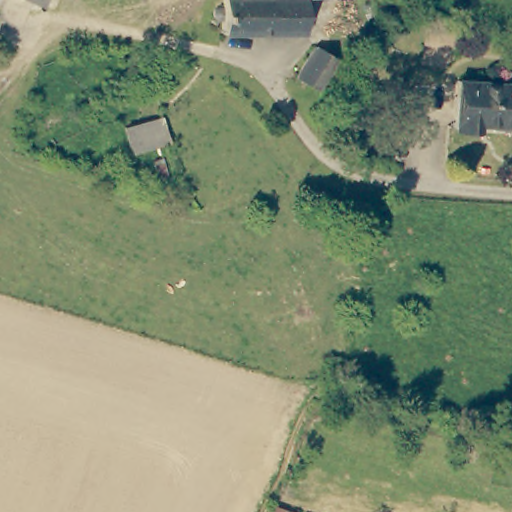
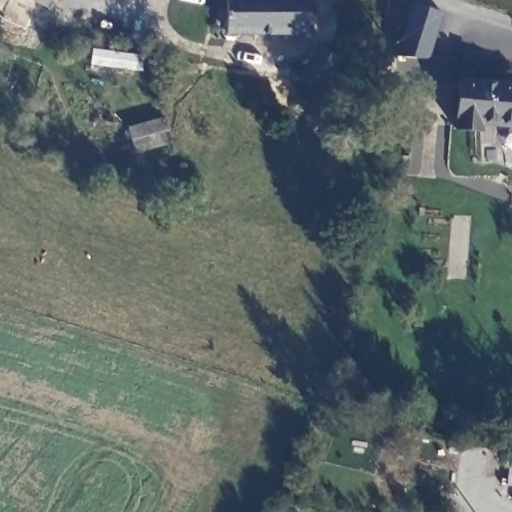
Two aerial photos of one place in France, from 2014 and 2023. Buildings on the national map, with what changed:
unchanged [(38,0),(37,2),(32,0),(38,0)]
unchanged [(37,2),(38,0),(52,0),(49,7),(37,2)]
unchanged [(226,34),(224,22),(217,21),(213,14),(214,4),(220,1),(223,0),(308,0),(308,31),(226,34)]
new [(428,59),(393,58),(407,3),(441,11),(428,59)]
unchanged [(337,60),(316,92),(295,79),(316,47),(337,60)]
unchanged [(481,131),(452,129),(455,76),(512,79),(512,127),(484,125),(481,131)]
unchanged [(292,512),(270,512),(271,508),(292,512)]

